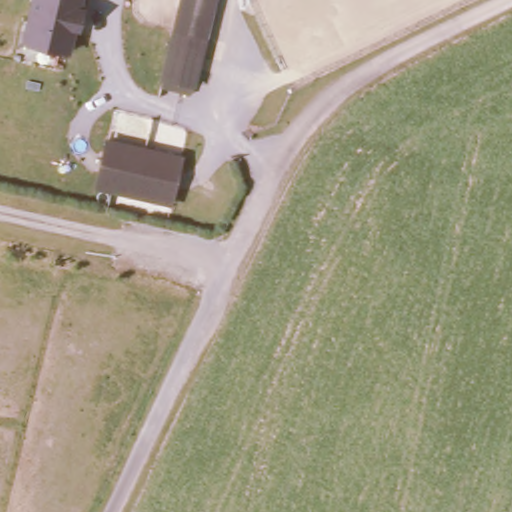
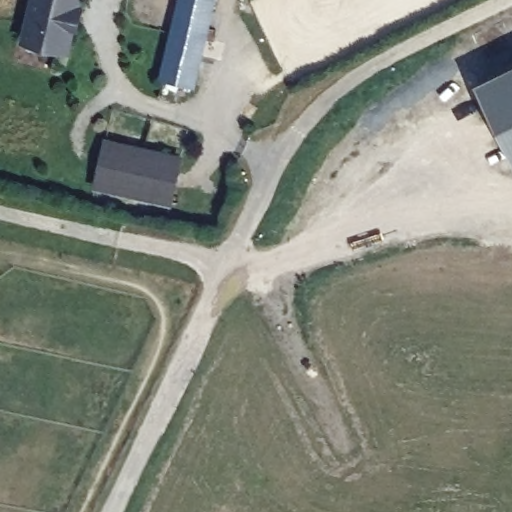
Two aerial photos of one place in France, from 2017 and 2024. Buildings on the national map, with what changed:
unchanged [(81,0),(71,48),(22,41),(31,0),(81,0)]
unchanged [(214,0),(192,94),(160,87),(179,0),(214,0)]
new [(472,87),(512,68),(512,160),(472,87)]
unchanged [(96,186),(106,137),(184,153),(174,202),(96,186)]

